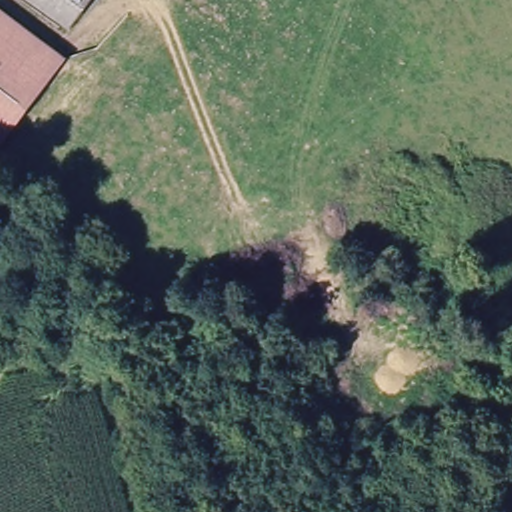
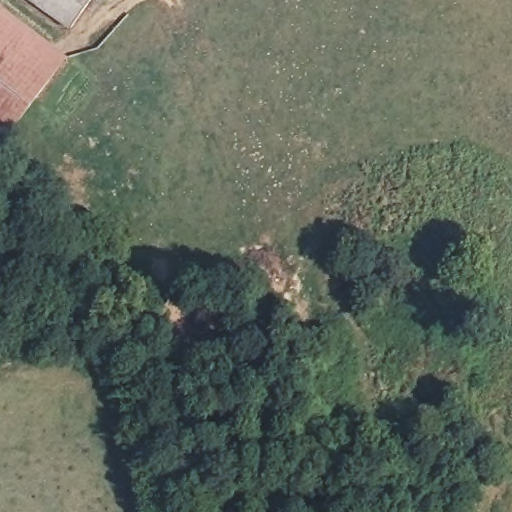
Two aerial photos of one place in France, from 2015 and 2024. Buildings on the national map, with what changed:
unchanged [(34,0),(96,0),(75,29),(34,0)]
unchanged [(0,7),(70,59),(12,135),(0,126),(0,7)]
unchanged [(0,126),(12,135),(0,150),(0,126)]

